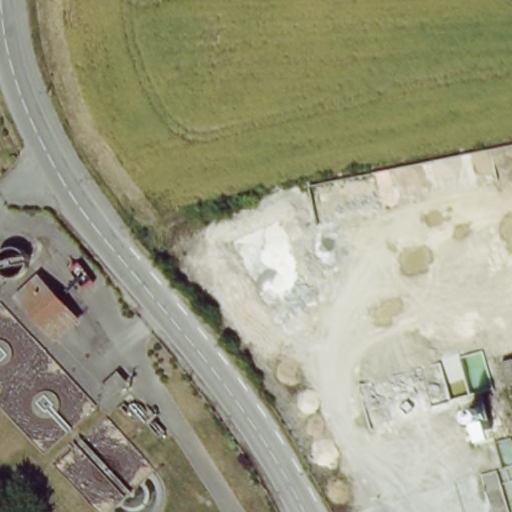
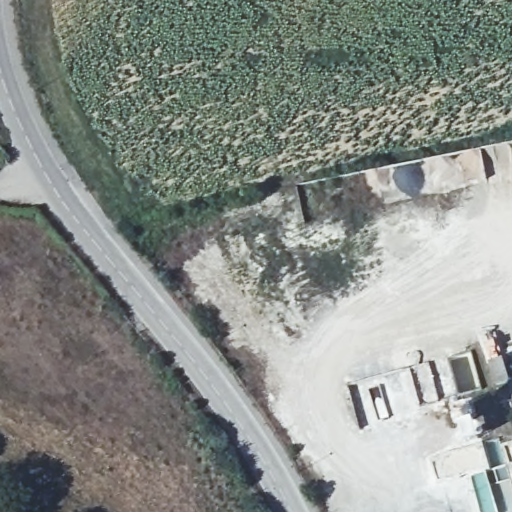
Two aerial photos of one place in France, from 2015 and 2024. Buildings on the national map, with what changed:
demolished [(31,273),(68,320),(45,341),(4,296),(31,273)]

